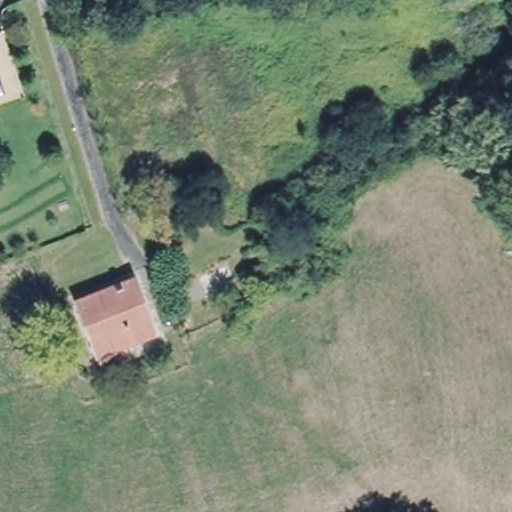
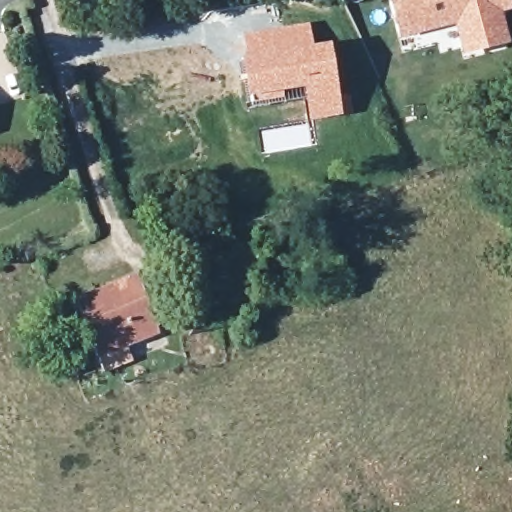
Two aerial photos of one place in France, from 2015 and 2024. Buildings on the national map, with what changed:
new [(455,25),(400,38),(391,0),(512,0),(512,1),(512,10),(502,12),(509,43),(464,56),(455,25)]
new [(309,23),(313,45),(331,42),(343,115),(308,120),(302,89),(255,99),(255,96),(247,97),(241,33),(309,23)]
unchanged [(269,273),(245,283),(239,269),(263,258),(269,273)]
unchanged [(234,279),(207,291),(199,272),(227,261),(234,279)]
unchanged [(104,373),(97,355),(75,299),(133,277),(154,332),(125,343),(132,362),(104,373)]

